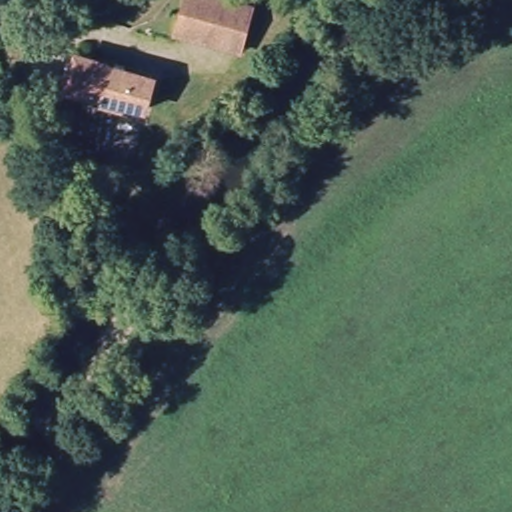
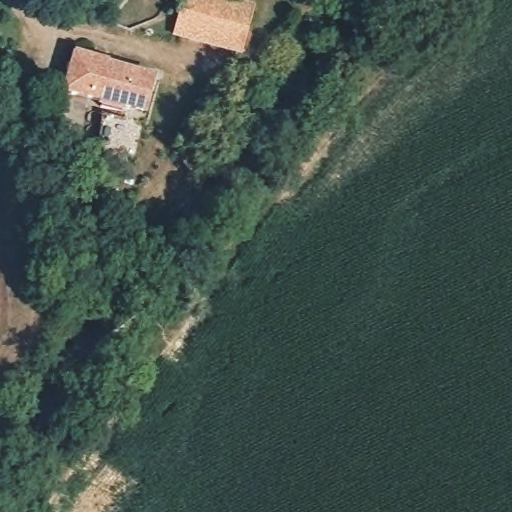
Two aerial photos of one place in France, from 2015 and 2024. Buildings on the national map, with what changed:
unchanged [(251,9),(239,51),(233,50),(176,33),(186,0),(218,0),(251,9)]
unchanged [(92,67),(95,68),(152,85),(142,118),(122,111),(120,116),(100,110),(101,105),(93,103),(66,95),(76,62),(92,67)]

